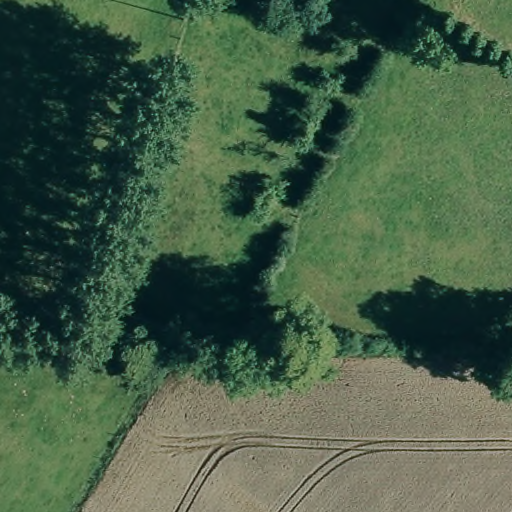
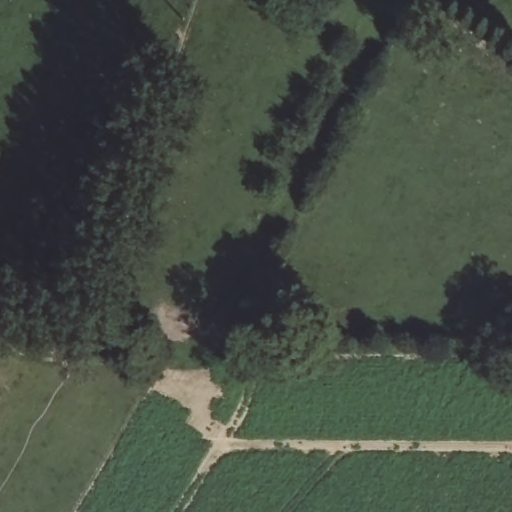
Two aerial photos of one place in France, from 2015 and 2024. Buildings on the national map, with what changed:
[]

